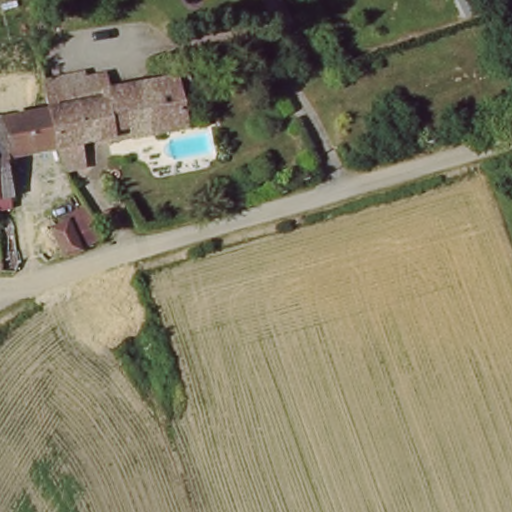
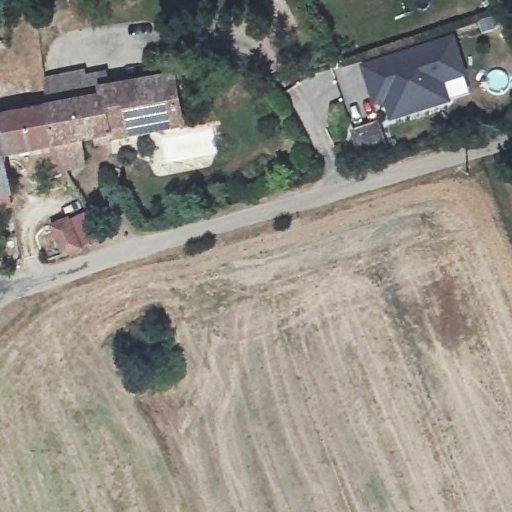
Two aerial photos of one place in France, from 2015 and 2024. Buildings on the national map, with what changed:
new [(454,32),(472,94),(387,123),(381,109),(375,111),(358,63),(454,32)]
unchanged [(50,127),(45,101),(100,90),(99,80),(169,67),(170,75),(183,134),(57,149),(50,127)]
unchanged [(0,206),(0,111),(35,103),(45,101),(50,127),(57,149),(7,157),(11,190),(12,205),(0,206)]
new [(379,120),(389,150),(359,160),(349,131),(379,120)]
new [(125,183),(132,207),(107,210),(101,190),(125,183)]
unchanged [(41,225),(67,219),(55,201),(82,190),(106,231),(50,258),(41,225)]

